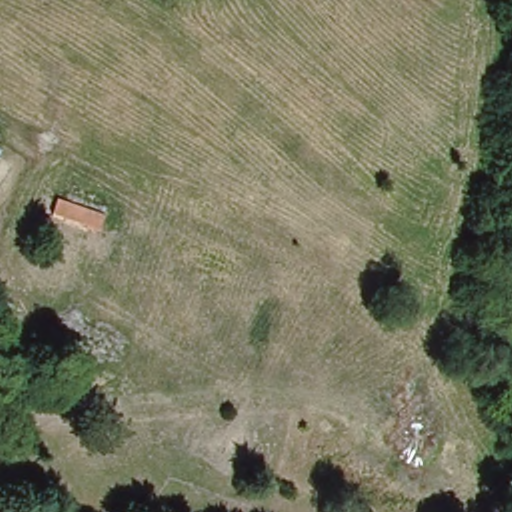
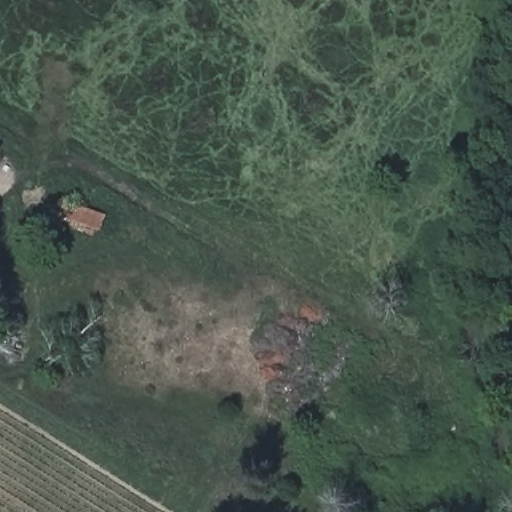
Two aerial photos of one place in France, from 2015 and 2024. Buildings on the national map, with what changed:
unchanged [(0,148),(0,145),(2,145),(0,148)]

